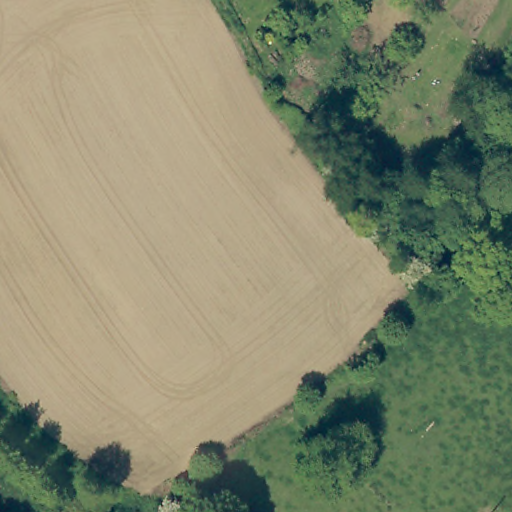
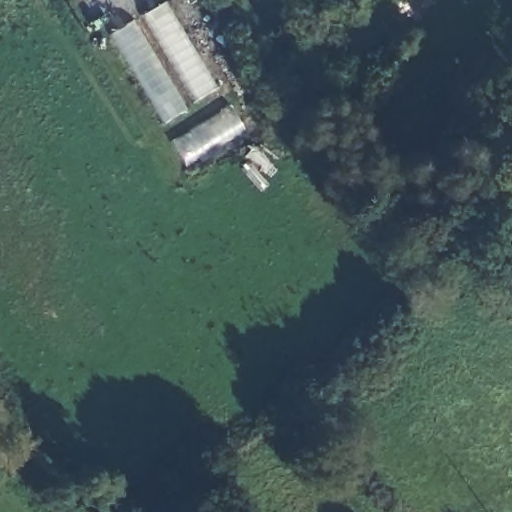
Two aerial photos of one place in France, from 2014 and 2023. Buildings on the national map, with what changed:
new [(107,36),(164,0),(166,0),(219,88),(162,124),(107,36)]
new [(186,166),(171,142),(232,105),(246,130),(186,166)]

